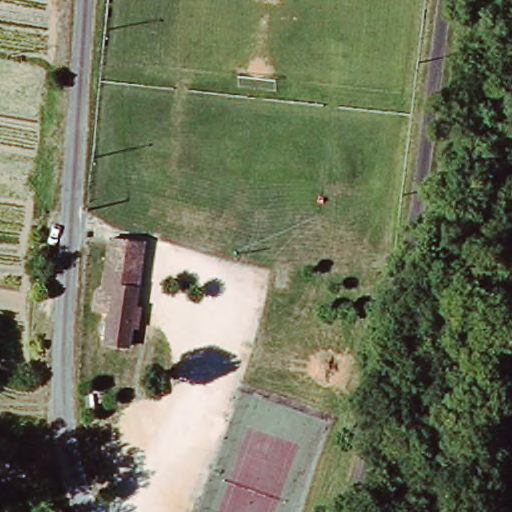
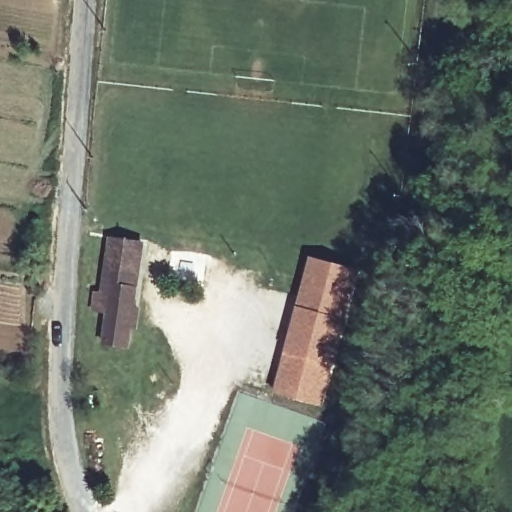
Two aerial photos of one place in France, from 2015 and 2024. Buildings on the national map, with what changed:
unchanged [(442,226),(445,225),(450,226),(453,229),(456,235),(455,240),(450,245),(445,246),(440,245),(437,243),(435,236),(436,231),(442,226)]
unchanged [(108,290),(115,234),(150,239),(136,343),(110,340),(114,310),(99,305),(102,288),(108,290)]
new [(320,256),(330,259),(365,269),(354,309),(351,318),(327,405),(282,392),(307,306),(320,256)]

